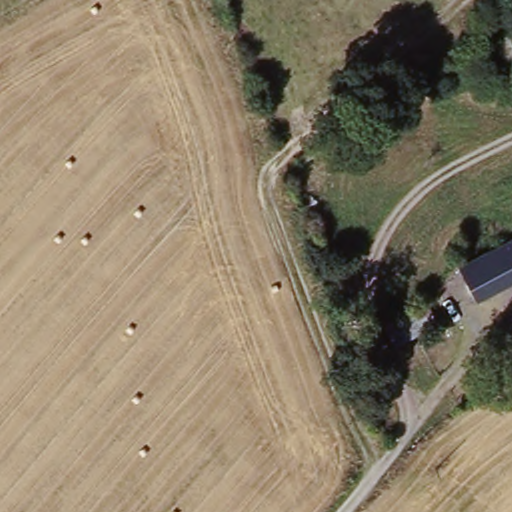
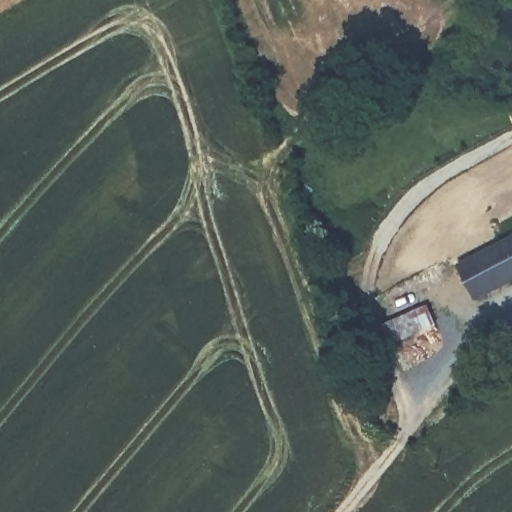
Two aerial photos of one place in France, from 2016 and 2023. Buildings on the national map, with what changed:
unchanged [(457,261),(494,243),(485,227),(512,214),(512,278),(475,296),(457,261)]
unchanged [(422,314),(430,335),(385,352),(376,332),(422,314)]

